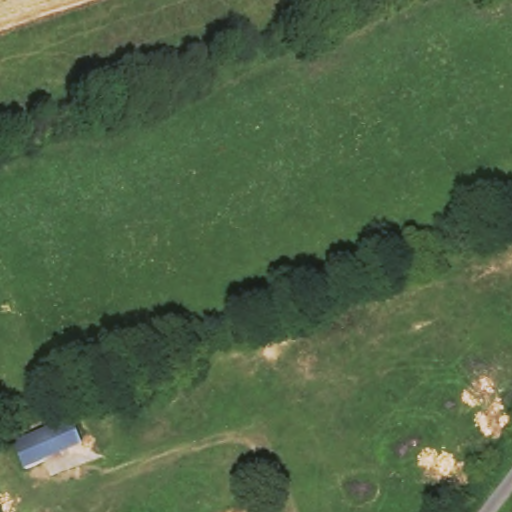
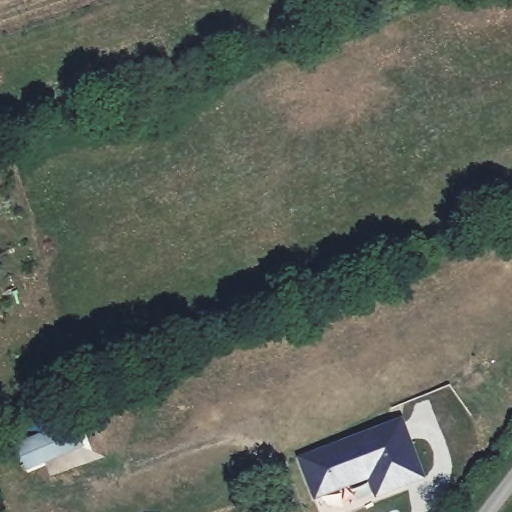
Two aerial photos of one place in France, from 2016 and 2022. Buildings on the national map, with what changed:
new [(38,461),(19,468),(9,445),(74,417),(83,435),(85,440),(38,461)]
new [(424,480),(375,499),(367,480),(313,500),(297,458),(402,418),(424,480)]

